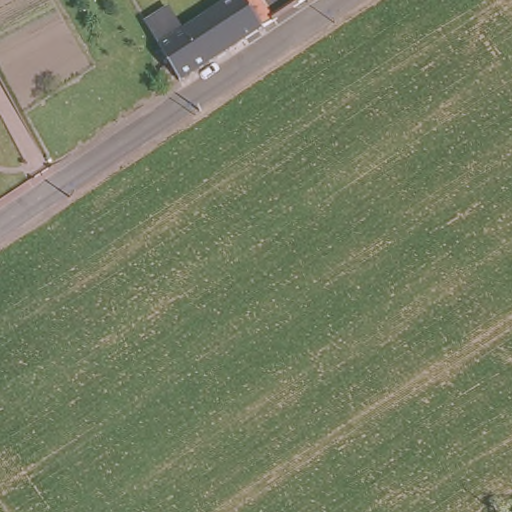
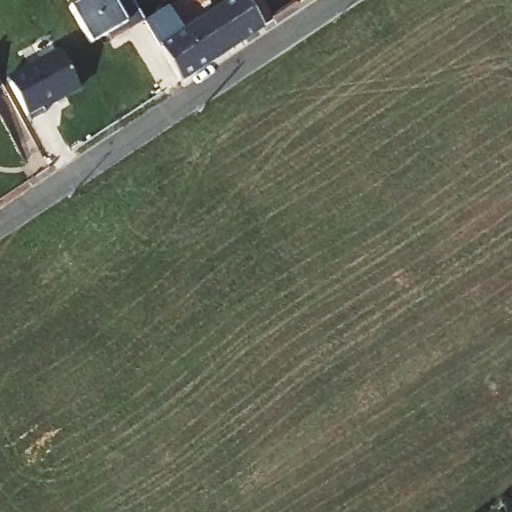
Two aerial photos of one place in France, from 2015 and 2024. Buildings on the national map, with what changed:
new [(133,0),(144,21),(112,41),(107,36),(92,44),(72,8),(85,0),(133,0)]
unchanged [(152,30),(177,15),(189,36),(245,0),(260,0),(277,24),(267,30),(184,85),(165,51),(152,30)]
unchanged [(297,0),(295,1),(295,0),(297,0)]
new [(80,90),(43,109),(45,112),(30,120),(7,78),(59,50),(80,90)]

